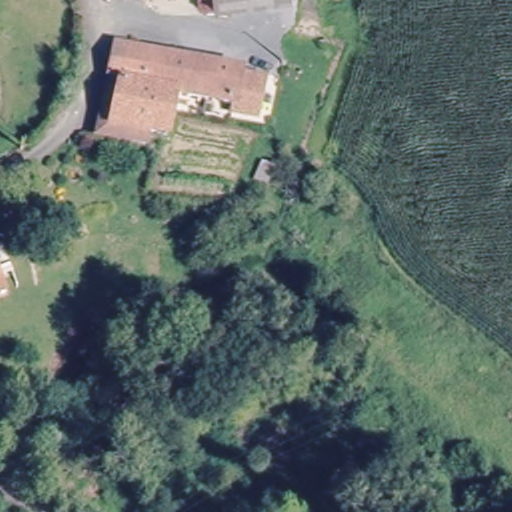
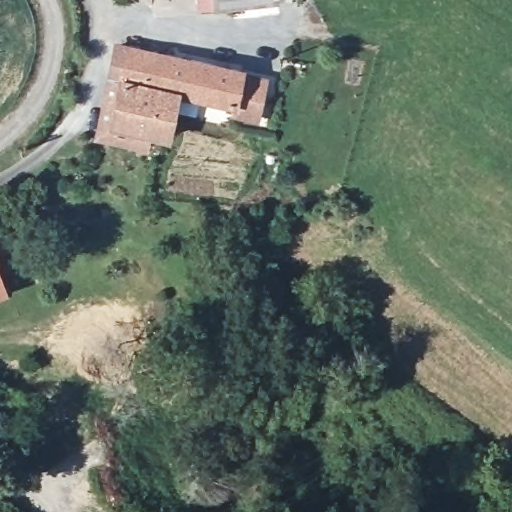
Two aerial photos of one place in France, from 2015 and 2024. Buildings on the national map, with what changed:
unchanged [(203,6),(202,0),(253,0),(203,6)]
unchanged [(118,85),(125,49),(237,73),(235,92),(255,95),(254,111),(174,96),(118,85)]
unchanged [(166,141),(147,136),(144,154),(134,153),(135,144),(125,142),(127,132),(109,128),(118,85),(174,96),(170,123),(166,141)]
unchanged [(0,296),(0,270),(10,292),(0,296)]

